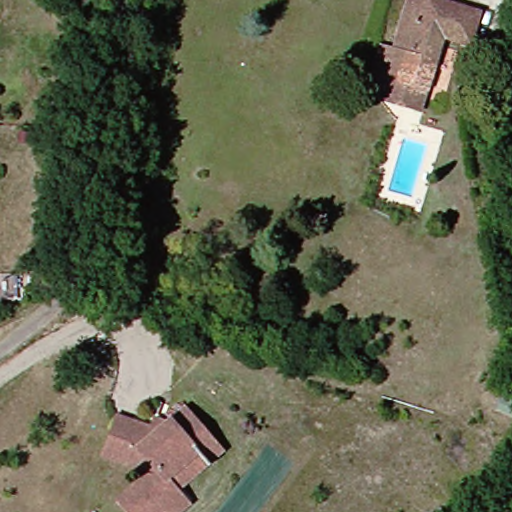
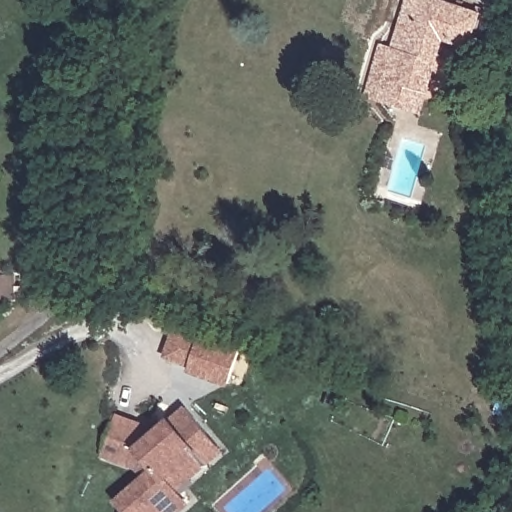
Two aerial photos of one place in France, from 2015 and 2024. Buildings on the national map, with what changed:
unchanged [(371,97),(386,45),(399,49),(413,0),(444,0),(487,13),(476,49),(449,41),(434,91),(427,114),(386,101),(371,97)]
new [(189,373),(191,368),(164,359),(174,327),(243,351),(230,387),(189,373)]
unchanged [(185,512),(133,512),(124,505),(152,479),(144,470),(139,468),(108,458),(120,418),(164,430),(190,405),(214,430),(229,447),(215,461),(185,489),(197,502),(187,511),(185,512)]

